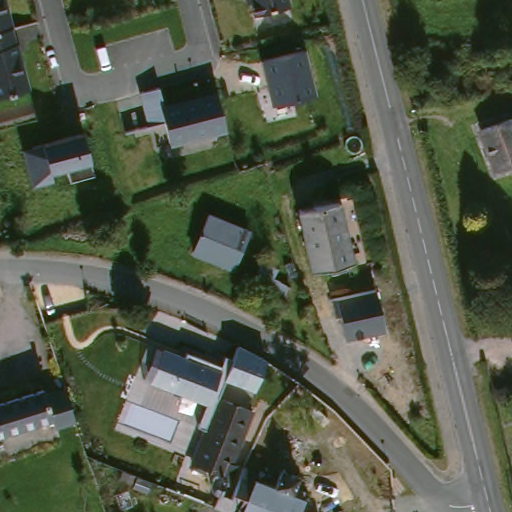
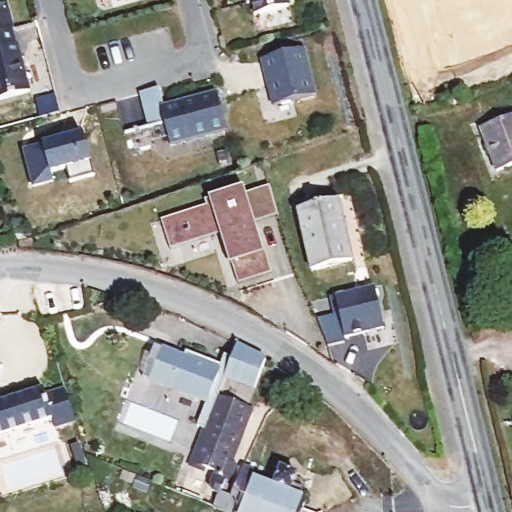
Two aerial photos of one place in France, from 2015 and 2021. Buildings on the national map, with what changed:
unchanged [(6,0),(29,90),(0,98),(0,0),(6,0)]
unchanged [(254,15),(251,2),(247,3),(246,0),(286,0),(288,6),(254,15)]
unchanged [(264,58),(303,49),(313,94),(273,105),(264,58)]
unchanged [(140,91),(159,87),(164,105),(215,93),(225,129),(169,144),(162,118),(147,122),(140,91)]
unchanged [(486,124),(512,114),(512,162),(501,166),(486,124)]
unchanged [(45,144),(84,133),(91,162),(94,175),(71,181),(68,169),(52,173),(54,182),(33,187),(23,150),(45,144)]
new [(211,207),(209,199),(242,188),(245,197),(268,189),(277,215),(255,224),(264,253),(271,273),(239,283),(232,264),(221,232),(172,248),(163,222),(211,207)]
unchanged [(317,266),(303,204),(343,195),(357,257),(317,266)]
demolished [(252,227),(238,261),(198,245),(211,210),(252,227)]
unchanged [(383,330),(345,339),(340,312),(334,315),(331,298),(337,296),(374,288),(383,330)]
unchanged [(207,429),(197,424),(206,403),(149,381),(151,379),(144,377),(156,346),(163,348),(163,346),(185,355),(186,351),(222,365),(226,354),(234,357),(238,342),(267,359),(255,390),(225,379),(221,391),(207,429)]
unchanged [(229,471),(196,457),(221,391),(257,404),(236,457),(249,462),(236,493),(235,493),(223,488),(229,471)]
unchanged [(33,394),(35,400),(54,394),(57,401),(60,412),(65,427),(45,434),(42,424),(0,437),(0,405),(33,394)]
unchanged [(223,488),(235,493),(236,493),(249,462),(257,465),(255,470),(277,479),(283,465),(284,463),(302,470),(296,486),(311,492),(307,503),(323,509),(321,512),(244,512),(217,501),(223,488)]

